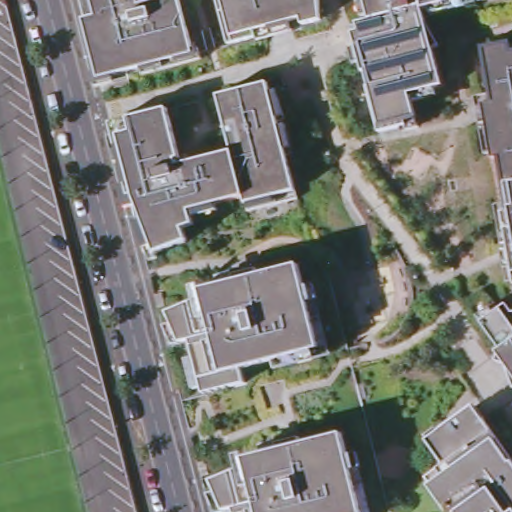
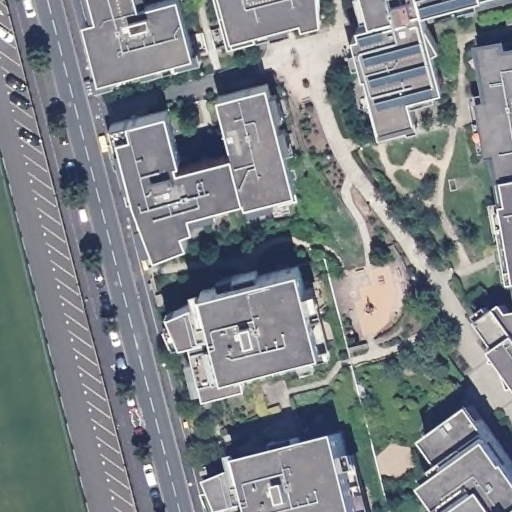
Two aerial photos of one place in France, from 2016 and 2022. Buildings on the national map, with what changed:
unchanged [(97,90),(93,77),(99,75),(79,0),(145,0),(147,7),(173,0),(181,0),(195,53),(201,52),(204,62),(159,74),(158,67),(129,75),(131,81),(97,90)]
unchanged [(256,36),(229,43),(217,0),(319,0),(321,19),(303,24),(301,18),(291,20),(294,28),(257,38),(256,36)]
unchanged [(399,123),(379,128),(362,59),(361,56),(353,58),(349,42),(357,40),(354,28),(361,26),(361,25),(359,19),(372,16),(370,11),(362,13),(359,0),(449,0),(433,4),(425,6),(428,19),(441,43),(435,46),(443,82),(435,84),(437,93),(412,99),(416,113),(419,124),(401,129),(399,123)]
unchanged [(449,0),(481,0),(434,11),(433,4),(449,0)]
unchanged [(511,253),(508,236),(502,237),(497,206),(510,204),(502,159),(494,160),(493,154),(488,155),(477,98),(493,95),(485,51),(512,46),(512,271),(506,272),(503,255),(511,253)]
unchanged [(122,183),(127,182),(121,160),(117,161),(116,159),(115,155),(112,143),(112,142),(111,136),(115,135),(112,123),(169,108),(182,159),(178,160),(180,165),(234,151),(219,95),(269,82),(272,92),(280,90),(286,115),(278,117),(282,133),(290,131),(294,147),(286,149),(299,198),(249,211),(245,196),(192,210),(196,224),(185,230),(190,242),(157,254),(156,248),(145,252),(133,205),(127,206),(126,201),(122,183)]
unchanged [(197,357),(192,340),(182,343),(174,345),(165,326),(173,324),(168,313),(203,297),(201,290),(219,284),(217,276),(233,271),(233,273),(256,266),(258,272),(298,260),(305,283),(323,343),(276,357),(245,367),(249,381),(208,394),(206,387),(198,389),(189,360),(197,357)]
unchanged [(315,280),(319,295),(318,295),(333,348),(278,365),(276,357),(323,343),(305,283),(315,280)]
unchanged [(502,349),(475,312),(492,300),(500,312),(509,305),(512,310),(512,372),(498,352),(502,349)]
unchanged [(449,469),(431,444),(479,410),(512,458),(512,512),(452,512),(431,482),(449,469)]
unchanged [(222,512),(211,512),(205,495),(212,493),(207,481),(243,467),(241,460),(260,455),(258,447),(274,443),(274,445),(298,439),(300,445),(340,435),(346,458),(359,512),(231,512),(230,510),(222,512)]
unchanged [(359,470),(358,470),(368,512),(359,512),(346,458),(356,455),(359,470)]

